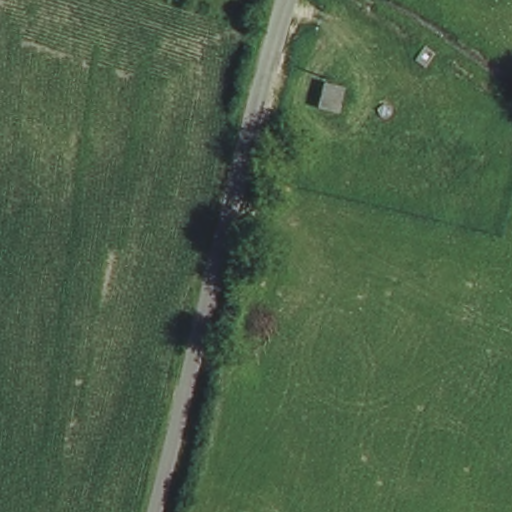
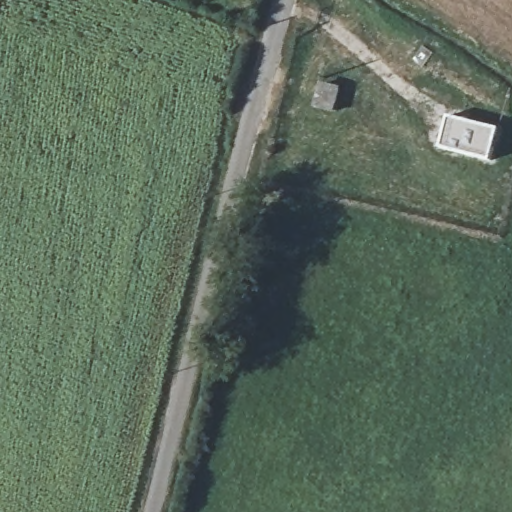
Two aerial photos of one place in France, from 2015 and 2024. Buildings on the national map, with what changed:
new [(441,148),(448,115),(501,129),(492,166),(441,148)]

